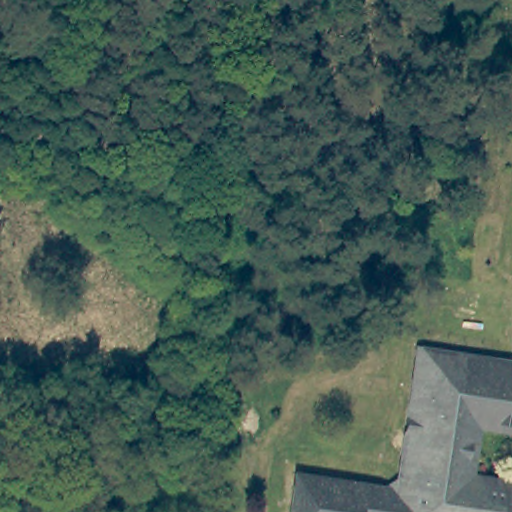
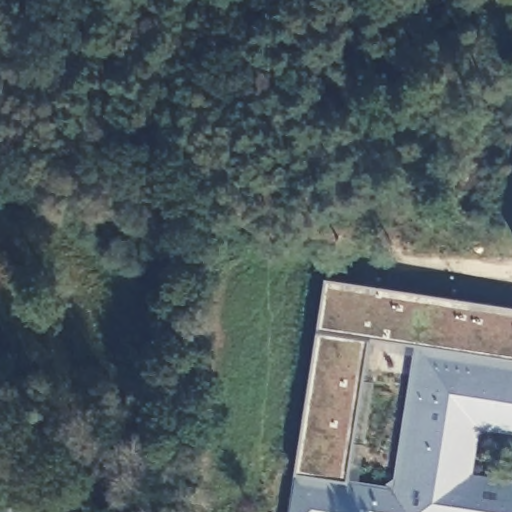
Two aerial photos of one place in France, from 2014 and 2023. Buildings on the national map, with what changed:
new [(512,307),(512,360),(416,345),(370,338),(350,481),(300,474),(321,335),(330,280),(512,307)]
unchanged [(512,512),(290,512),(296,473),(385,487),(395,478),(416,345),(512,360),(512,512)]

